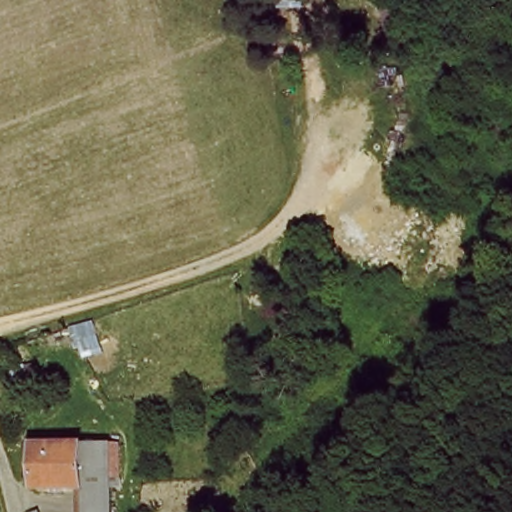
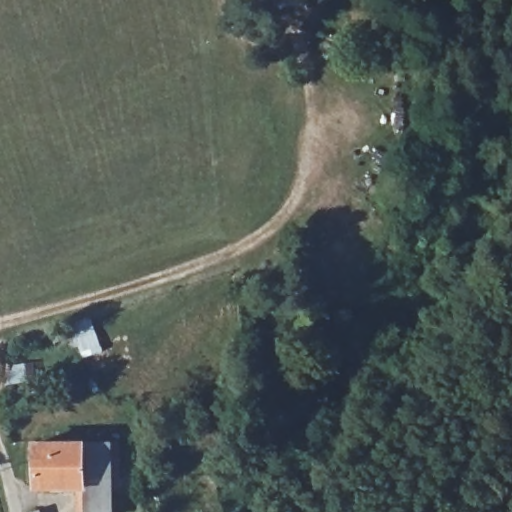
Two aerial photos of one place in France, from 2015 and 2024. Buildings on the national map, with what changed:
unchanged [(85,487),(38,488),(37,444),(68,443),(114,442),(117,487),(85,487)]
unchanged [(86,512),(85,487),(117,487),(118,512),(86,512)]

